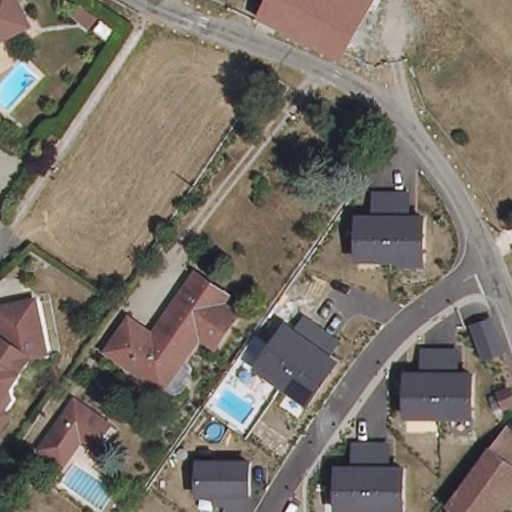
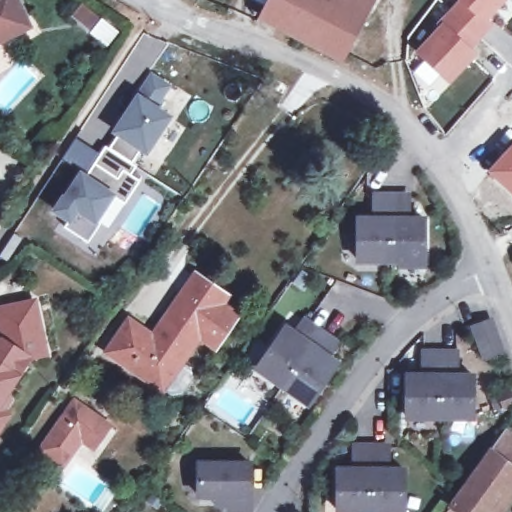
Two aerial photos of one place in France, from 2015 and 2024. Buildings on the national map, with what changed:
unchanged [(0,34),(0,0),(21,0),(27,12),(30,21),(10,30),(0,34)]
unchanged [(265,6),(268,0),(329,0),(312,32),(265,6)]
unchanged [(342,49),(312,32),(329,0),(360,0),(367,4),(342,49)]
unchanged [(360,0),(370,0),(367,4),(360,0)]
new [(502,0),(485,18),(491,23),(478,36),(452,11),(462,0),(502,0)]
new [(83,7),(97,17),(88,27),(75,16),(83,7)]
new [(478,36),(468,47),(474,52),(450,79),(420,52),(443,26),(440,23),(452,11),(478,36)]
new [(116,32),(107,42),(93,31),(102,20),(116,32)]
new [(65,221),(50,212),(60,194),(64,195),(80,170),(84,172),(105,146),(110,149),(115,135),(111,132),(135,96),(134,94),(150,72),(172,85),(156,106),(172,117),(149,156),(138,150),(132,163),(137,166),(131,176),(140,182),(125,204),(112,201),(97,224),(101,224),(87,242),(64,227),(65,221)]
new [(512,194),(487,171),(512,143),(512,194)]
unchanged [(398,268),(397,261),(355,261),(355,214),(373,214),(373,192),(412,193),(411,215),(426,216),(426,267),(398,268)]
unchanged [(240,311),(222,338),(207,327),(168,387),(113,349),(134,318),(165,339),(172,329),(167,326),(202,275),(230,296),(227,302),(240,311)]
unchanged [(0,432),(0,347),(3,346),(0,326),(0,314),(36,307),(45,360),(30,363),(8,395),(10,406),(3,416),(8,420),(0,432)]
unchanged [(482,362),(469,325),(493,317),(505,353),(482,362)]
unchanged [(309,407),(255,370),(285,323),(297,331),(305,318),(340,342),(331,358),(340,363),(309,407)]
unchanged [(403,419),(405,372),(422,372),(422,348),(458,350),(459,372),(475,373),(475,420),(403,419)]
unchanged [(38,445),(69,399),(78,405),(102,422),(90,442),(77,433),(59,460),(38,445)]
unchanged [(505,416),(502,407),(512,404),(512,418),(507,420),(505,416)]
unchanged [(455,501),(497,447),(512,427),(512,482),(489,512),(447,512),(455,501)]
unchanged [(336,466),(352,466),(353,445),(390,445),(390,466),(406,467),(406,512),(336,512),(336,466)]
unchanged [(250,497),(251,512),(227,512),(227,507),(216,507),(217,497),(197,498),(197,461),(252,461),(250,497)]

